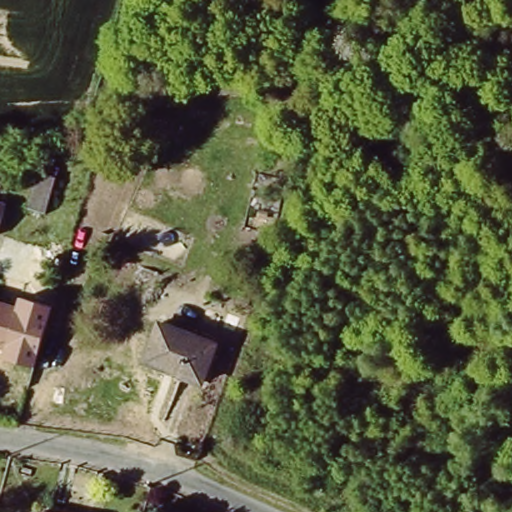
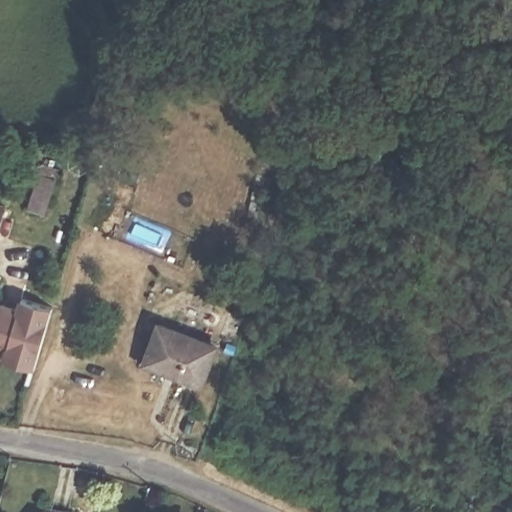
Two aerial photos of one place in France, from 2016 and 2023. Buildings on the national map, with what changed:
unchanged [(0,236),(0,202),(9,205),(0,236)]
unchanged [(0,347),(0,302),(21,308),(9,349),(0,347)]
unchanged [(160,326),(219,345),(205,384),(147,364),(160,326)]

